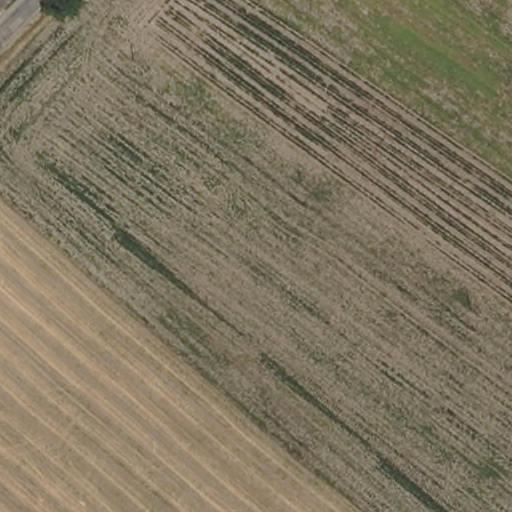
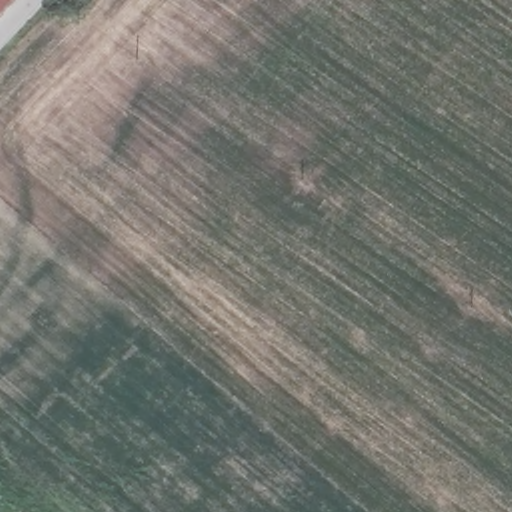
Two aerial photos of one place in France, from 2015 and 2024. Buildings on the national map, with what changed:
unchanged [(0,2),(0,0),(17,0),(10,9),(1,3),(0,2)]
unchanged [(10,9),(0,20),(0,2),(1,3),(10,9)]

